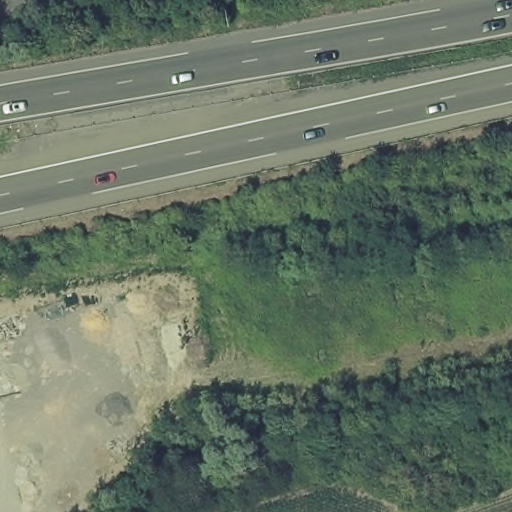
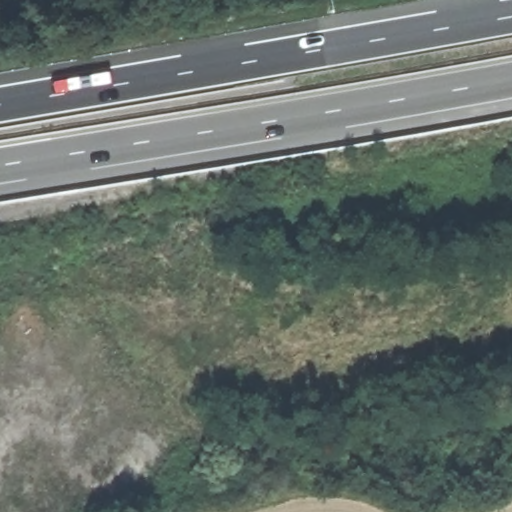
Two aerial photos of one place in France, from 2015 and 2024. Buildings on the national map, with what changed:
[]

